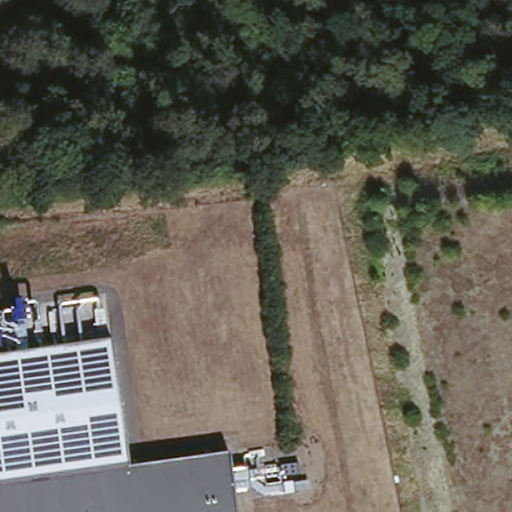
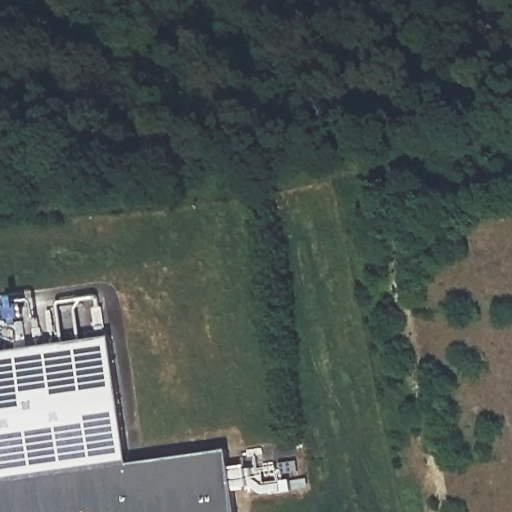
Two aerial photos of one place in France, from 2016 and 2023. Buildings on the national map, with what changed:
unchanged [(133,461),(230,449),(239,512),(0,512),(0,352),(115,335),(133,461)]

